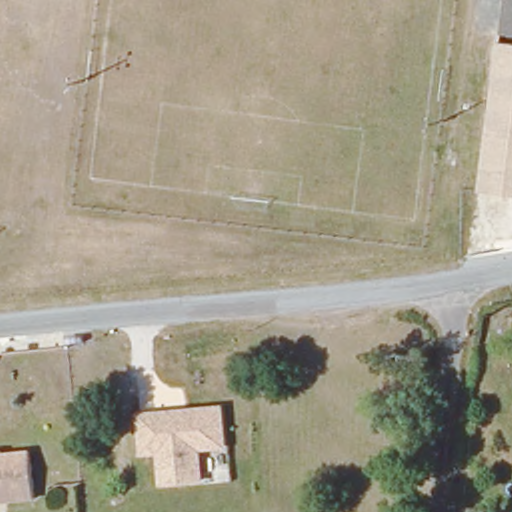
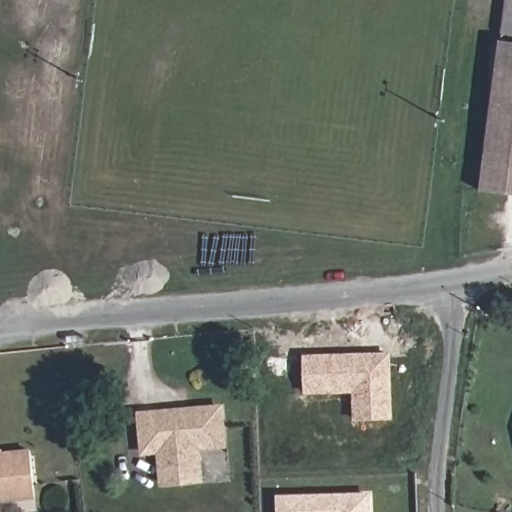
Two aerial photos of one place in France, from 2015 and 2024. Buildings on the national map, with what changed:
unchanged [(495,35),(500,0),(512,0),(512,38),(495,35)]
unchanged [(481,192),(500,44),(512,45),(512,195),(481,192)]
new [(353,422),(352,394),(304,396),(302,355),(390,352),(393,420),(353,422)]
unchanged [(221,405),(224,450),(200,451),(202,481),(159,487),(157,455),(140,456),(135,412),(221,405)]
unchanged [(0,502),(0,456),(29,454),(30,498),(0,502)]
new [(370,493),(371,512),(277,512),(277,495),(370,493)]

